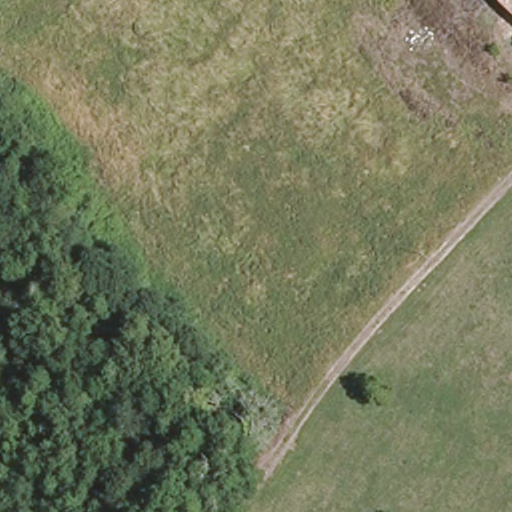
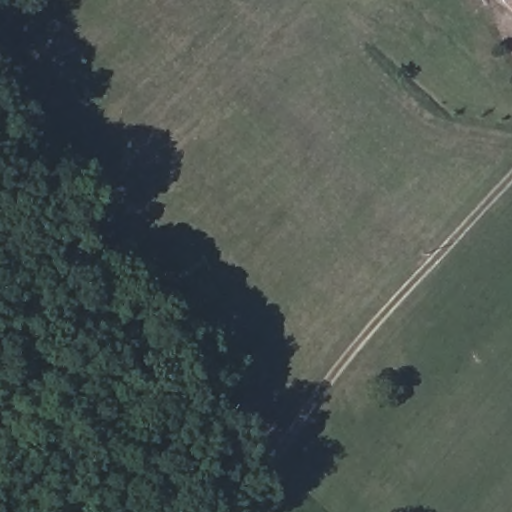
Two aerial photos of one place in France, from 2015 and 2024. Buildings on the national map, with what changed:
unchanged [(512,11),(499,0),(512,0),(512,11)]

